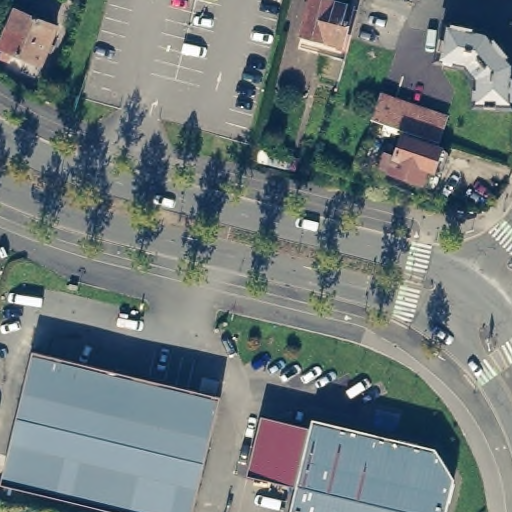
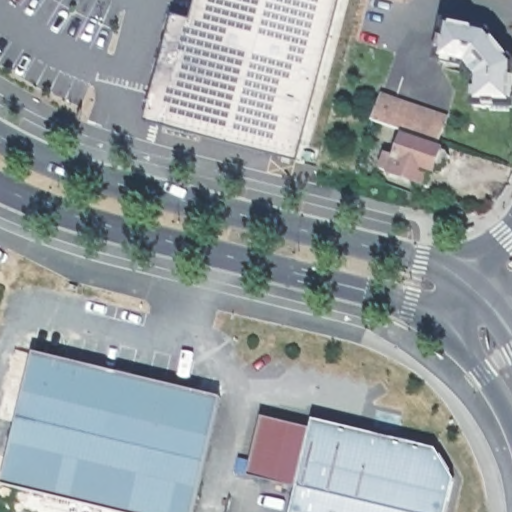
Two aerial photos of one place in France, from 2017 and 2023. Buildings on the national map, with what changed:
new [(143,120),(171,13),(188,18),(193,0),(338,0),(297,160),(143,120)]
demolished [(300,35),(303,25),(309,0),(353,0),(348,16),(354,17),(351,29),(347,47),(330,42),(300,35)]
demolished [(52,49),(47,47),(41,60),(1,43),(17,6),(56,23),(50,39),(55,41),(52,49)]
unchanged [(475,74),(465,61),(440,56),(437,53),(445,17),(488,26),(512,55),(512,103),(475,101),(475,74)]
unchanged [(372,120),(382,94),(448,117),(439,143),(372,120)]
unchanged [(450,156),(445,171),(440,173),(427,169),(422,184),(380,169),(385,154),(395,158),(403,136),(447,152),(450,156)]
unchanged [(2,479),(34,347),(222,392),(193,512),(136,512),(2,479)]
unchanged [(455,474),(446,512),(290,512),(314,415),(437,444),(455,474)]
unchanged [(309,434),(297,485),(247,475),(261,418),(310,429),(309,434)]

